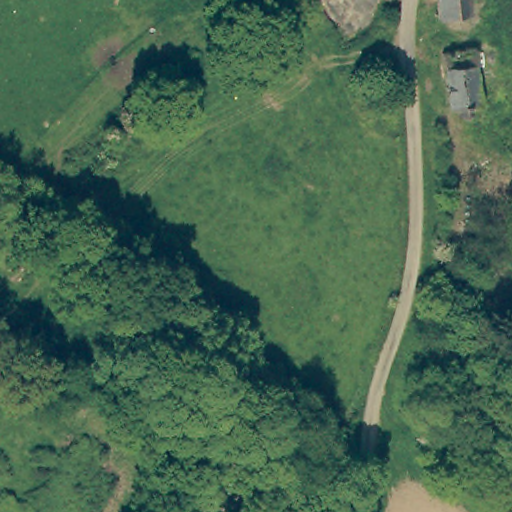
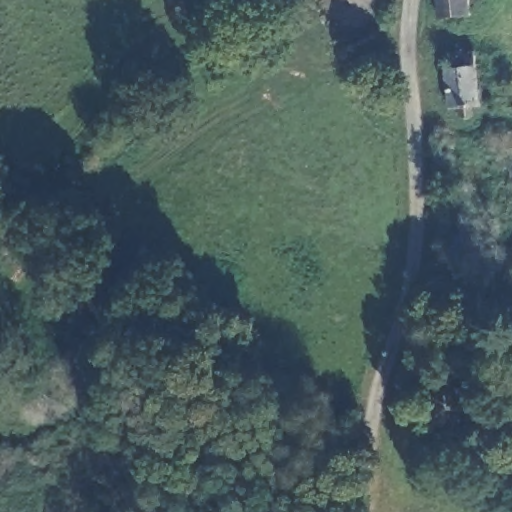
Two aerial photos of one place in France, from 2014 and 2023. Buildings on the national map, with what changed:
unchanged [(467,20),(440,18),(441,0),(469,0),(467,20)]
unchanged [(446,105),(448,49),(474,52),(470,98),(470,106),(446,105)]

